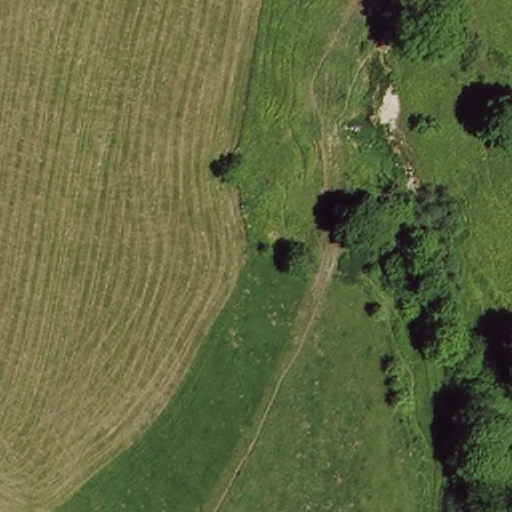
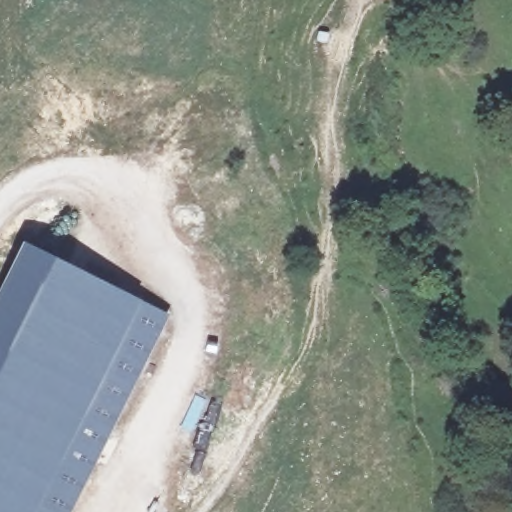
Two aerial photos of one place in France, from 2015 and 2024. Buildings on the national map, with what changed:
new [(0,297),(26,244),(171,317),(74,512),(0,512),(0,297)]

